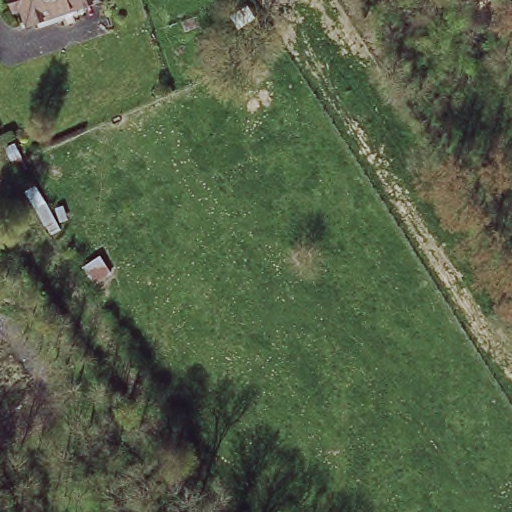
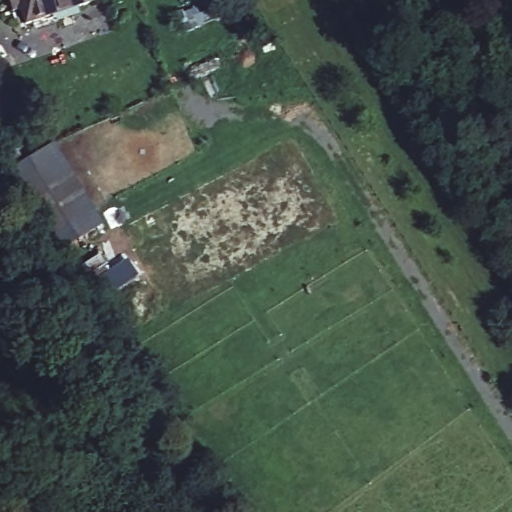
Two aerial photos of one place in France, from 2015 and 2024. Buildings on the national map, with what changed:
unchanged [(17,9),(9,11),(5,0),(84,0),(72,4),(47,14),(22,23),(17,9)]
new [(104,221),(59,247),(10,169),(52,143),(104,221)]

